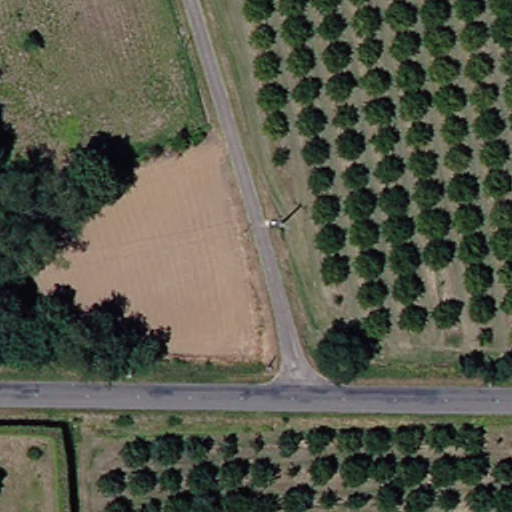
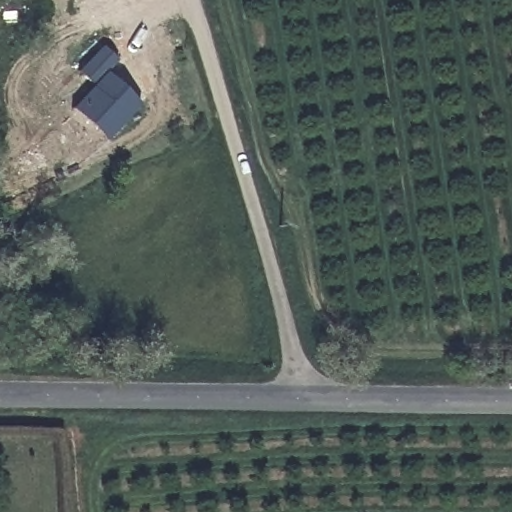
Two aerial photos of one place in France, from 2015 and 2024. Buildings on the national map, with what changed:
new [(71,108),(92,85),(76,70),(102,45),(117,60),(107,71),(140,105),(105,140),(71,108)]

